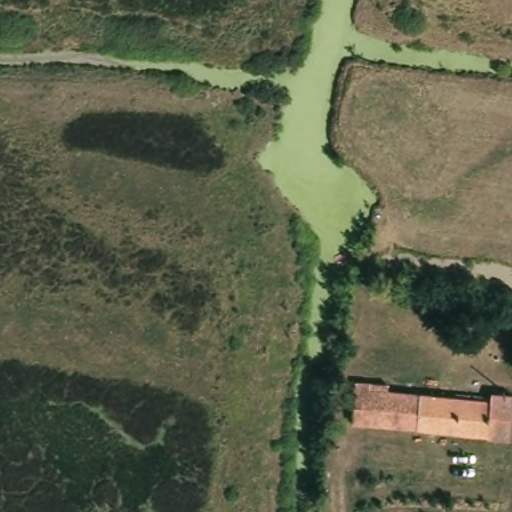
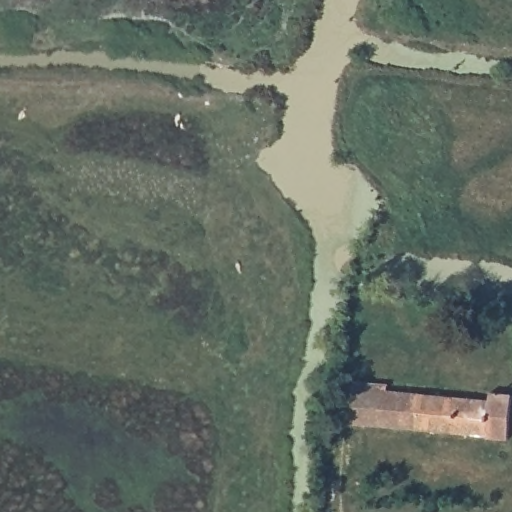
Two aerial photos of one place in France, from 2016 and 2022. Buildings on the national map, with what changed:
unchanged [(505,401),(502,433),(351,420),(353,386),(505,401)]

